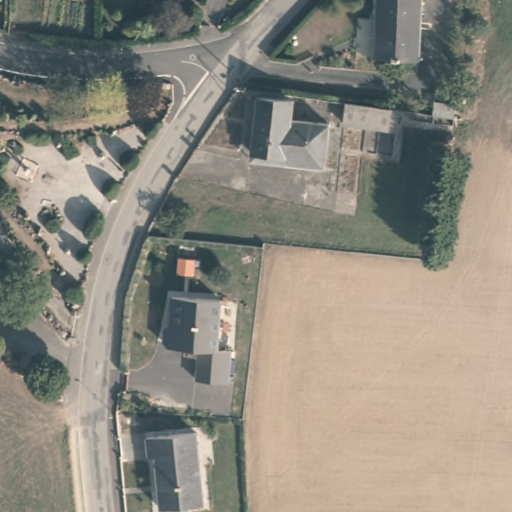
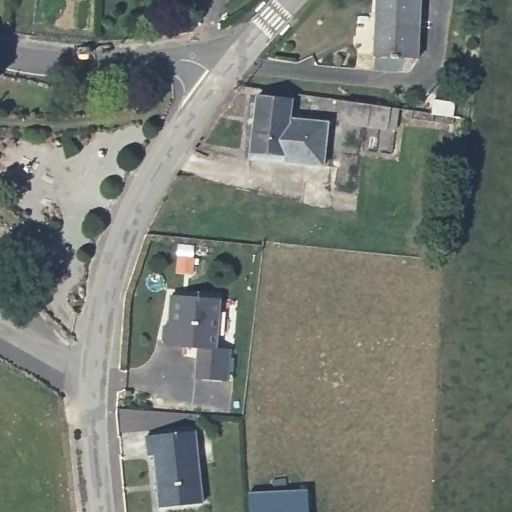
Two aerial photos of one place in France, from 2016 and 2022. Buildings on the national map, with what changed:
unchanged [(417,58),(374,56),(377,0),(420,0),(417,58)]
unchanged [(250,151),(257,96),(292,100),(290,117),(328,122),(323,165),(285,161),(249,158),(250,151)]
unchanged [(395,129),(388,128),(343,122),(345,101),(391,107),(398,108),(395,129)]
unchanged [(430,112),(432,101),(455,103),(454,116),(430,112)]
unchanged [(167,344),(163,338),(164,325),(169,320),(170,294),(220,296),(216,346),(230,347),(227,379),(195,377),(198,346),(190,345),(167,344)]
unchanged [(204,502),(161,507),(155,455),(149,455),(146,435),(195,430),(204,502)]
new [(307,488),(309,512),(248,512),(246,490),(307,488)]

